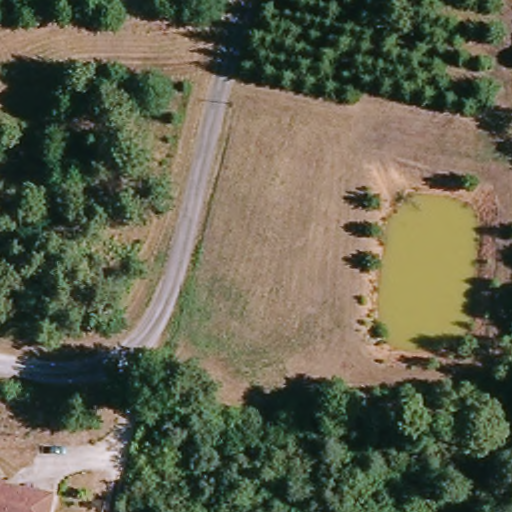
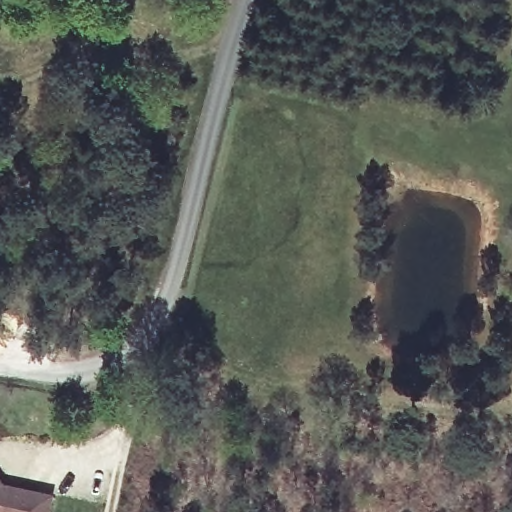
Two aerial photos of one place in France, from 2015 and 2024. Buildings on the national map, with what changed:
unchanged [(0,512),(0,473),(10,487),(27,492),(59,500),(56,512),(0,512)]

